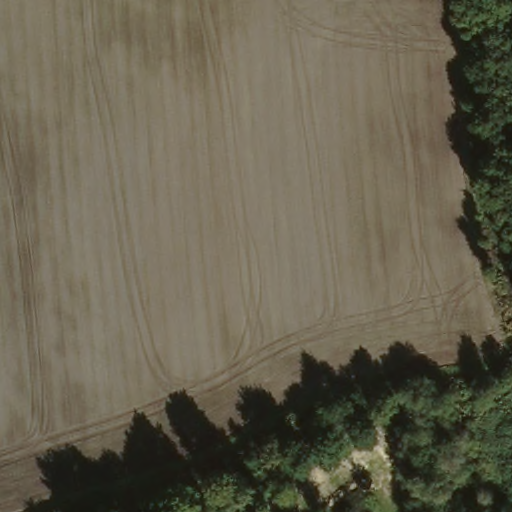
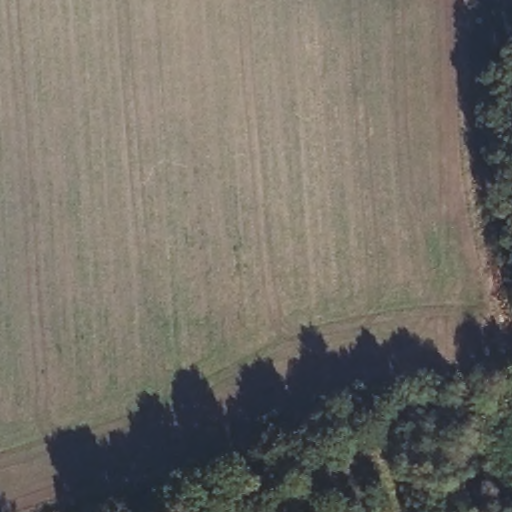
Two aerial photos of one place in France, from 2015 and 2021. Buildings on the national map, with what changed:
[]

